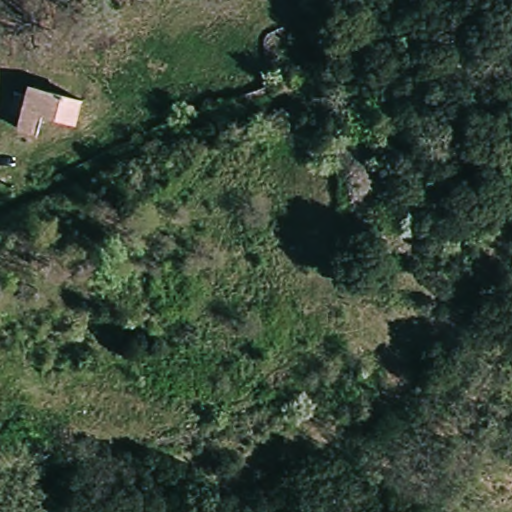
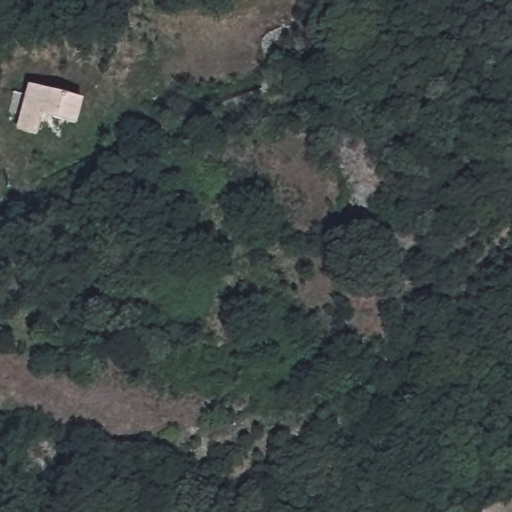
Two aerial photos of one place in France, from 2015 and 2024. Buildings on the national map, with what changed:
unchanged [(42,115),(36,131),(16,126),(33,85),(81,100),(73,124),(42,115)]

